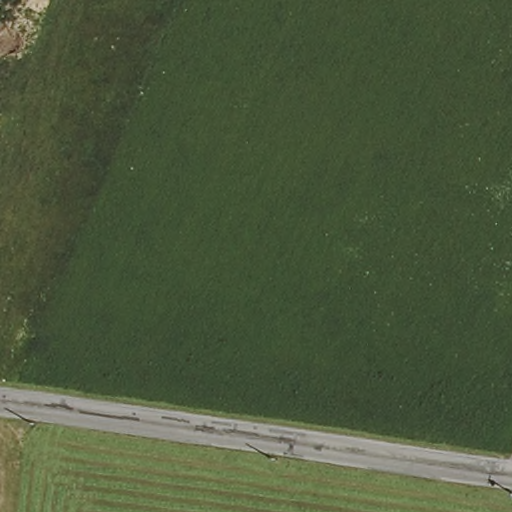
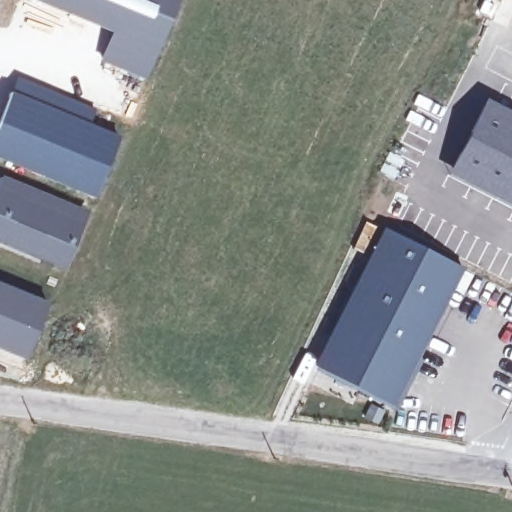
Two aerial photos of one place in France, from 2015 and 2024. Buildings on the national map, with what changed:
new [(100,62),(111,33),(31,0),(176,0),(143,80),(100,62)]
new [(98,108),(88,123),(120,137),(95,200),(0,158),(0,119),(11,93),(18,75),(98,108)]
new [(512,200),(451,169),(485,101),(512,115),(512,200)]
unchanged [(81,216),(61,267),(0,243),(0,182),(81,216)]
new [(382,231),(384,227),(465,268),(394,407),(312,364),(368,256),(353,248),(366,222),(382,231)]
new [(51,301),(28,359),(0,348),(0,281),(51,301)]

